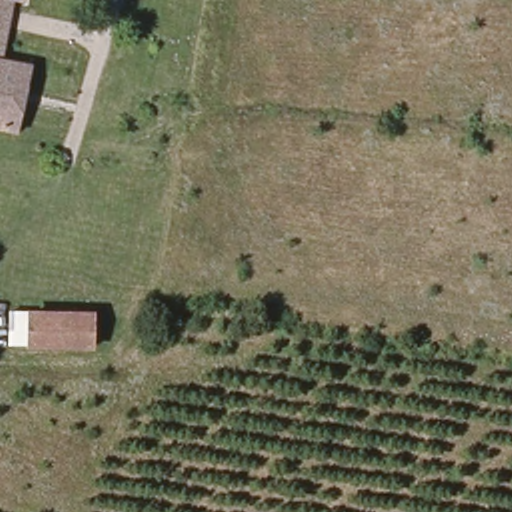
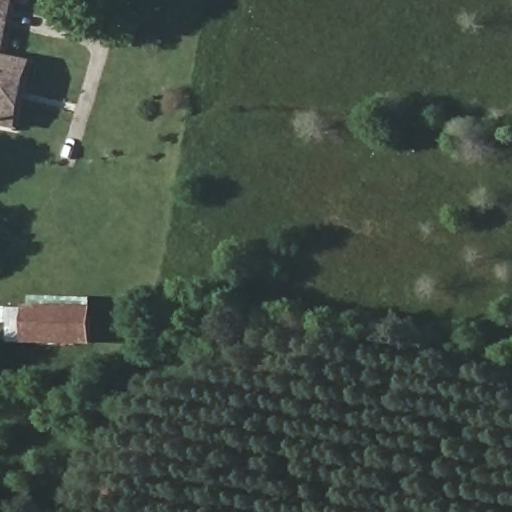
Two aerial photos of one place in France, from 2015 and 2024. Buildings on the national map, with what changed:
unchanged [(18,7),(12,37),(7,57),(40,64),(27,127),(0,121),(0,0),(31,0),(29,9),(18,7)]
unchanged [(36,337),(37,310),(96,312),(94,340),(36,337)]

